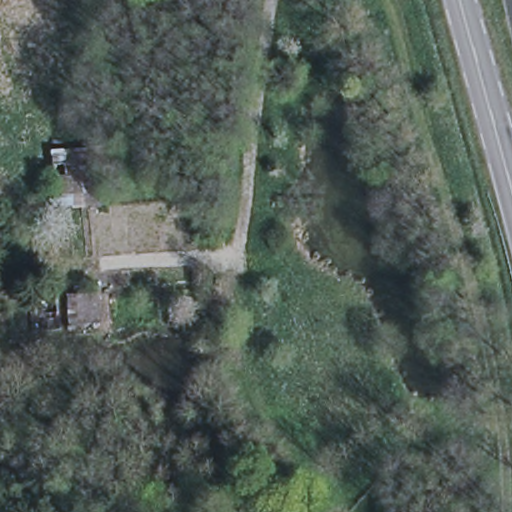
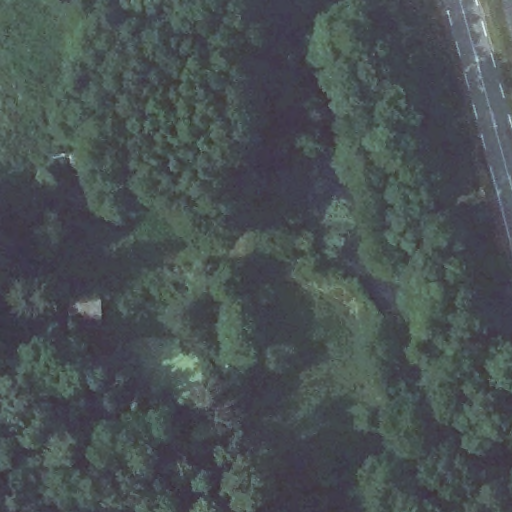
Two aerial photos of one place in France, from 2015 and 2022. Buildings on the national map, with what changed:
unchanged [(80,147),(105,146),(108,208),(58,211),(54,149),(80,147)]
unchanged [(87,295),(102,294),(105,326),(72,328),(70,296),(87,295)]

